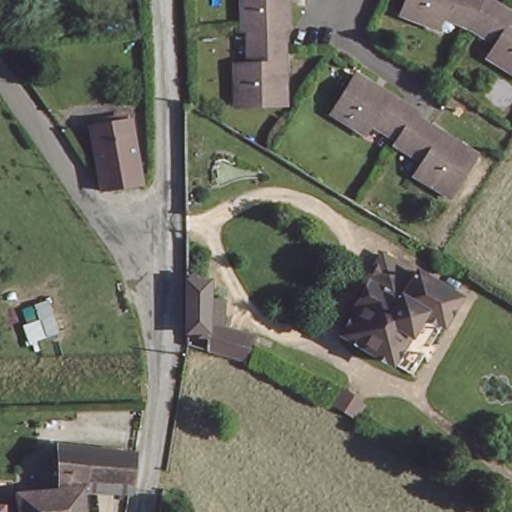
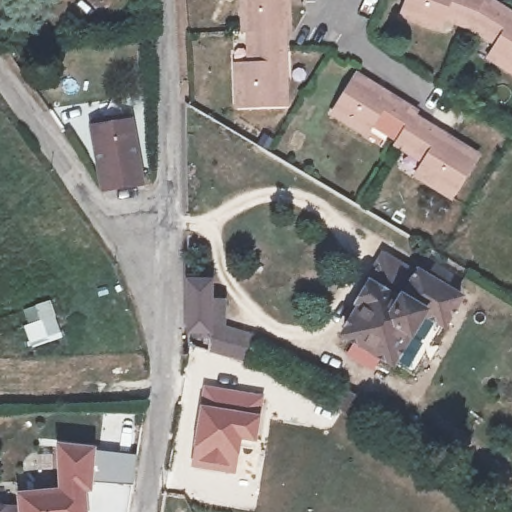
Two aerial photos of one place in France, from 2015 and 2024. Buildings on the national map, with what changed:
unchanged [(243,103),(241,60),(264,60),(263,46),(259,47),(258,29),(251,29),(250,0),(292,0),(293,27),(288,27),(290,102),(243,103)]
unchanged [(501,35),(493,27),(489,32),(471,21),(454,15),(457,10),(446,6),(439,21),(402,6),(404,0),(493,0),(512,11),(512,68),(489,55),(501,35)]
unchanged [(453,201),(416,178),(427,160),(416,151),(412,157),(393,146),(397,142),(384,133),(388,126),(380,120),(369,137),(331,115),(356,76),(418,111),(412,117),(479,157),(453,201)]
unchanged [(97,185),(91,129),(129,121),(136,178),(97,185)]
unchanged [(422,319),(418,338),(413,335),(394,367),(346,338),(364,308),(361,307),(372,286),(367,282),(384,254),(462,297),(444,332),(422,319)]
unchanged [(213,285),(213,315),(218,315),(217,326),(209,325),(209,331),(258,332),(258,359),(191,353),(191,340),(202,340),(202,327),(191,326),(191,283),(213,285)]
new [(202,385),(264,394),(255,443),(241,441),(236,475),(189,467),(202,385)]
unchanged [(334,410),(345,390),(366,402),(356,424),(334,410)]
unchanged [(138,486),(90,482),(88,496),(89,512),(68,512),(67,495),(65,478),(62,447),(142,454),(138,486)]
unchanged [(67,495),(68,512),(23,512),(23,491),(67,495)]
unchanged [(10,502),(10,512),(0,512),(0,502),(10,502)]

